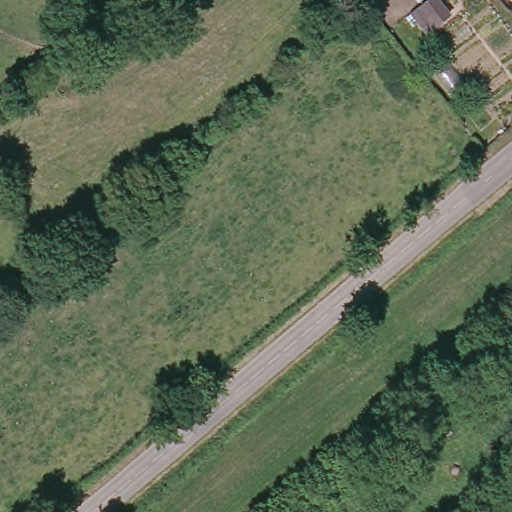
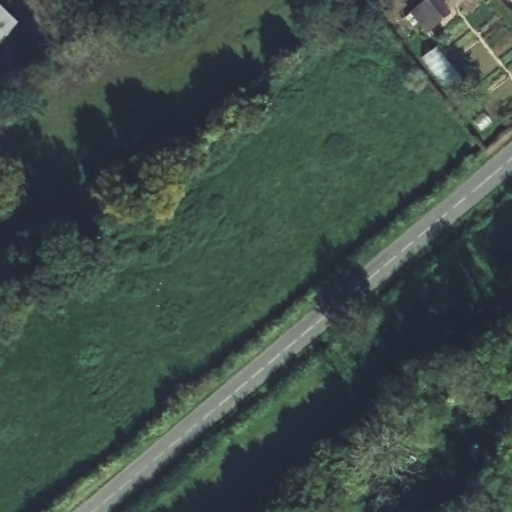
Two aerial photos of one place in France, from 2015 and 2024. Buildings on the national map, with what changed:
unchanged [(454,0),(462,0),(473,14),(460,28),(443,9),(454,0)]
new [(0,44),(0,8),(17,25),(0,44)]

